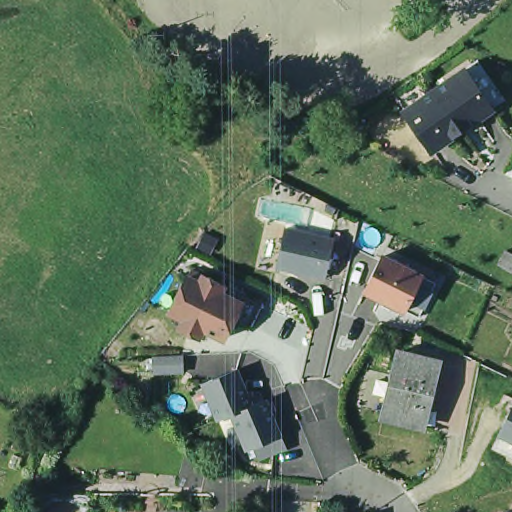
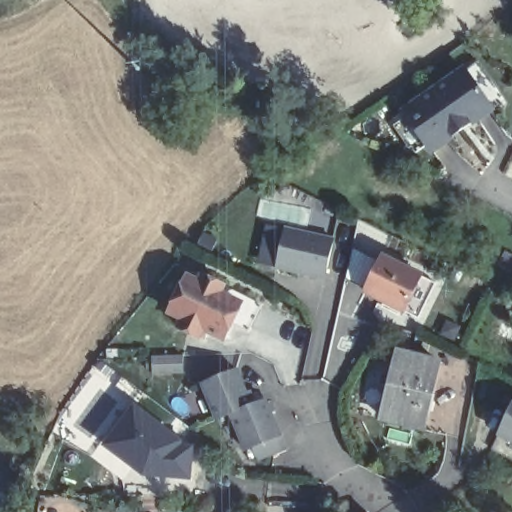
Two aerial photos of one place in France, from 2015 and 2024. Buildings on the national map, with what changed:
unchanged [(469,71),(497,111),(480,122),(471,121),(462,127),(439,92),(469,71)]
unchanged [(453,133),(452,142),(435,154),(407,114),(439,92),(462,127),(453,133)]
unchanged [(335,236),(330,277),(281,270),(286,227),(335,236)]
unchanged [(426,275),(407,313),(366,297),(384,256),(426,275)]
unchanged [(203,277),(206,272),(233,285),(229,295),(247,302),(227,345),(208,336),(204,342),(179,332),(183,322),(170,313),(191,272),(203,277)]
new [(184,355),(183,373),(149,374),(150,357),(184,355)]
unchanged [(443,371),(428,435),(387,426),(404,362),(410,363),(430,367),(443,371)]
unchanged [(256,405),(268,399),(289,452),(261,462),(252,447),(244,449),(229,416),(217,421),(201,383),(241,368),(256,405)]
new [(145,478),(101,447),(135,403),(186,442),(182,446),(196,447),(193,481),(145,478)]
unchanged [(497,441),(512,407),(512,447),(497,441)]

